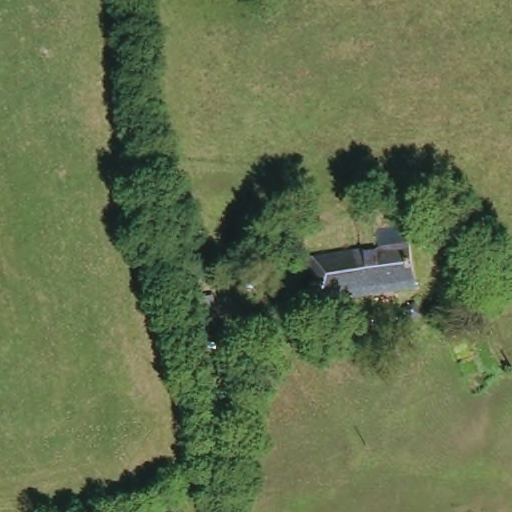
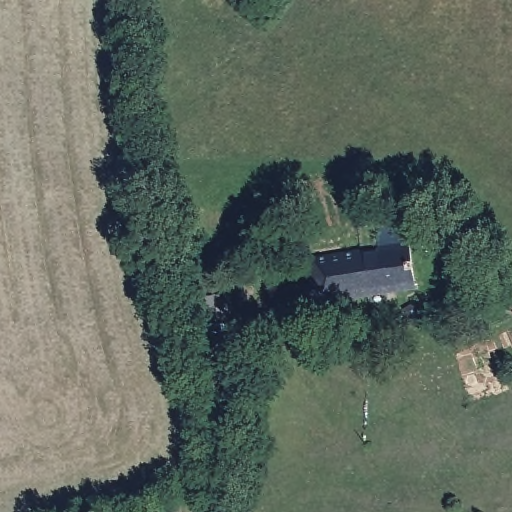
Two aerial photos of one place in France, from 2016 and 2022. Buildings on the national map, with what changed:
unchanged [(306,304),(304,285),(313,284),(314,257),(379,255),(380,238),(415,234),(417,299),(306,304)]
unchanged [(203,279),(182,284),(179,267),(201,263),(203,279)]

